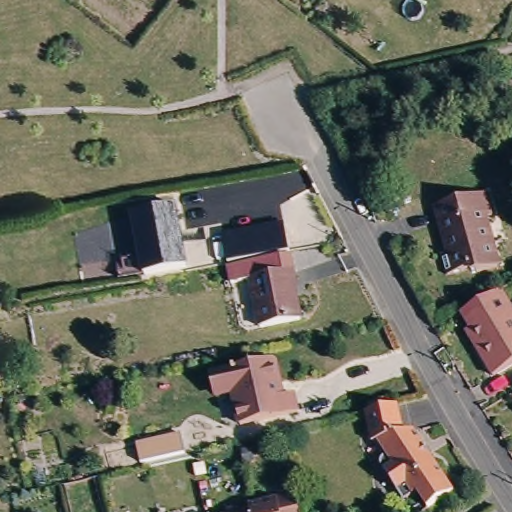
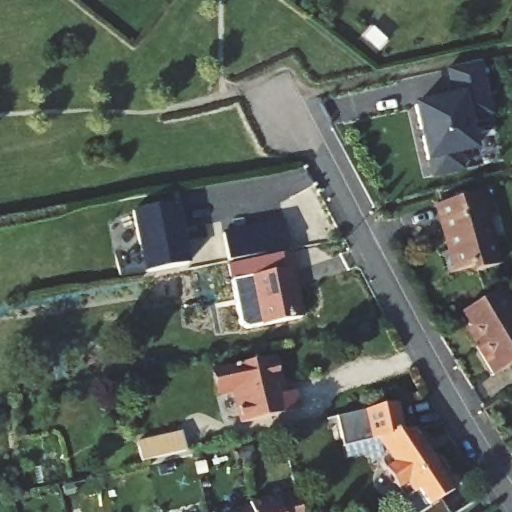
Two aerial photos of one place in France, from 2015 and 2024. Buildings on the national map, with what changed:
new [(455,97),(449,68),(480,61),(492,113),(468,118),(475,147),(458,151),(462,169),(435,175),(431,159),(428,159),(417,105),(455,97)]
unchanged [(490,212),(482,214),(492,265),(465,271),(465,266),(442,270),(437,248),(446,246),(437,202),(453,198),(486,191),(490,212)]
unchanged [(175,204),(185,264),(145,270),(134,211),(175,204)]
unchanged [(285,222),(290,253),(229,261),(223,234),(285,222)]
unchanged [(293,255),(296,269),(294,270),(250,279),(231,283),(227,267),(293,255)]
unchanged [(260,325),(256,307),(250,279),(294,270),(297,286),(295,287),(297,299),(301,318),(260,325)]
unchanged [(470,330),(458,311),(497,288),(512,314),(512,359),(487,374),(473,350),(463,334),(470,330)]
unchanged [(283,384),(281,384),(283,395),(295,392),(300,411),(228,427),(221,394),(206,398),(201,375),(277,357),(283,384)]
unchanged [(430,502),(420,488),(407,495),(402,487),(385,460),(384,458),(384,457),(385,455),(385,453),(385,451),(386,449),(387,448),(388,446),(380,435),(373,436),(367,405),(394,399),(399,398),(406,427),(416,426),(449,475),(456,485),(430,502)]
unchanged [(118,446),(163,436),(168,455),(162,457),(122,466),(118,446)]
unchanged [(250,500),(297,489),(301,512),(218,512),(250,504),(250,500)]

